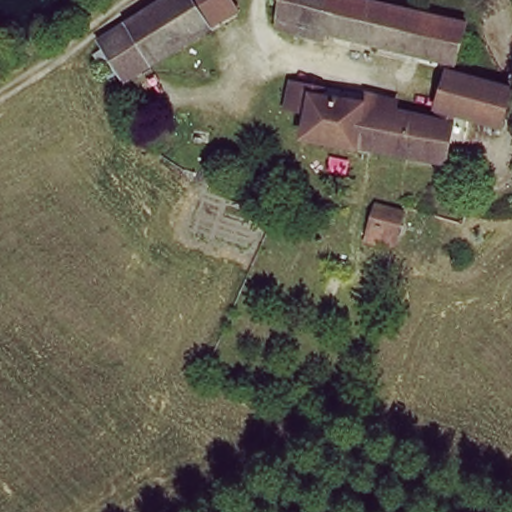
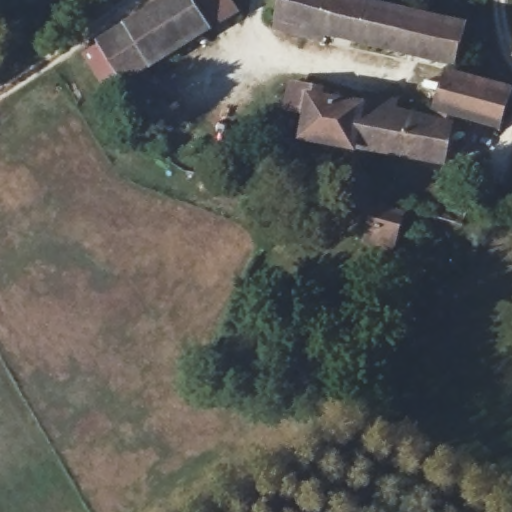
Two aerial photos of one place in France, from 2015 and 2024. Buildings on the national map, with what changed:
unchanged [(204,40),(129,88),(127,80),(105,48),(138,28),(188,0),(213,35),(204,40)]
unchanged [(188,0),(225,0),(241,21),(213,35),(188,0)]
unchanged [(454,22),(457,17),(469,21),(458,65),(276,23),(278,0),(354,0),(404,11),(454,22)]
unchanged [(452,111),(438,107),(446,75),(455,77),(468,80),(510,90),(499,125),(479,120),(472,141),(449,136),(444,163),(309,137),(313,108),(289,101),(291,83),(321,89),(321,97),(374,107),(376,96),(397,101),(396,111),(449,120),(452,111)]
unchanged [(397,247),(371,240),(380,207),(406,214),(397,247)]

